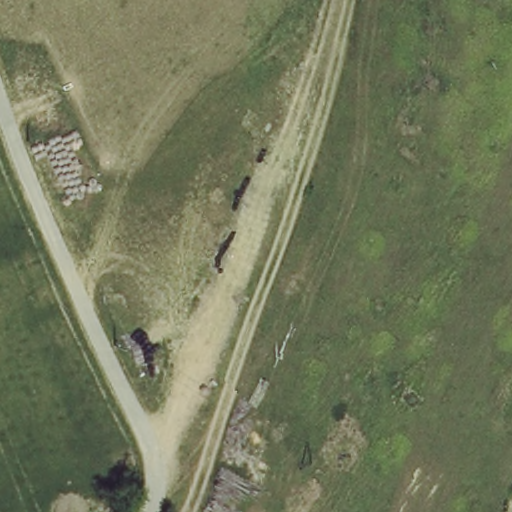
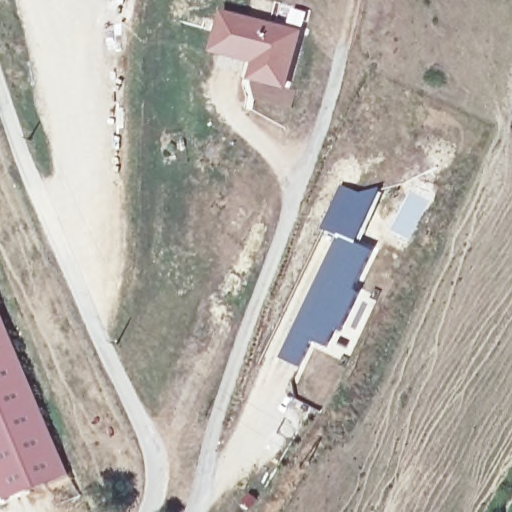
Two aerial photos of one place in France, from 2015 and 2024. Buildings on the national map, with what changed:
new [(253,66),(211,56),(221,11),(304,32),(288,92),(249,82),(253,66)]
new [(337,236),(372,251),(354,292),(359,295),(344,331),(337,328),(328,349),(312,342),(301,369),(280,360),(337,236)]
new [(66,474),(6,499),(0,485),(0,317),(66,474)]

